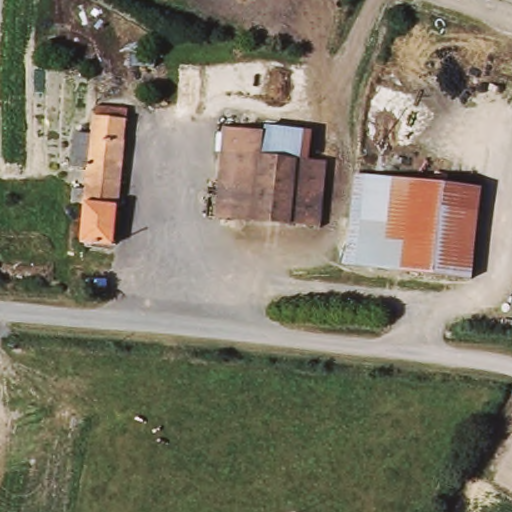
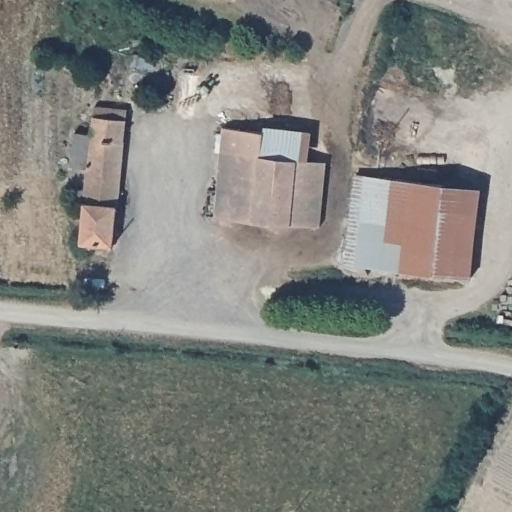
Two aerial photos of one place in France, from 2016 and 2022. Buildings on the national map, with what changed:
unchanged [(88,242),(85,243),(83,243),(87,208),(76,205),(77,188),(87,189),(89,165),(73,164),(77,130),(93,131),(93,127),(94,127),(98,98),(129,102),(126,130),(112,290),(83,288),(88,242)]
unchanged [(276,121),(309,123),(307,157),(272,154),(276,125),(276,121)]
unchanged [(276,125),(272,154),(307,157),(330,159),(322,225),(220,216),(230,123),(276,125)]
unchanged [(481,278),(350,266),(362,165),(488,174),(481,278)]

